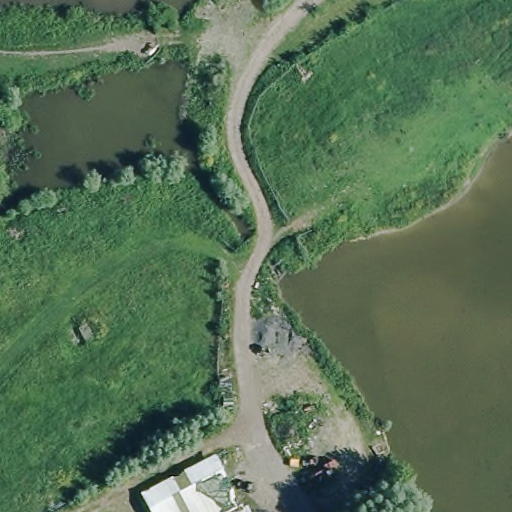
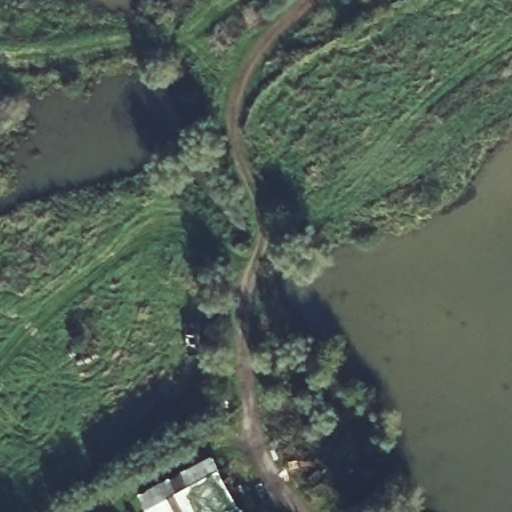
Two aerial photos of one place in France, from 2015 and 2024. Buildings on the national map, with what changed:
unchanged [(216,452),(243,507),(248,504),(252,512),(151,512),(141,492),(216,452)]

